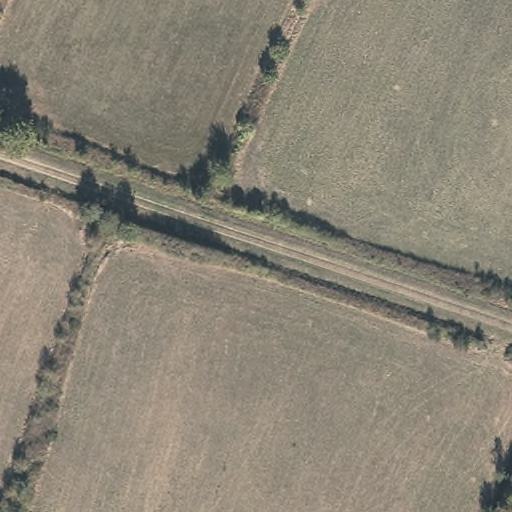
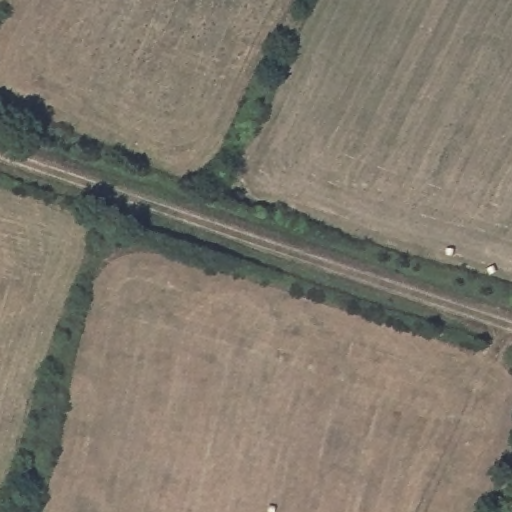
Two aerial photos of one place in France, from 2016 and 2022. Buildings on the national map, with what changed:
[]

